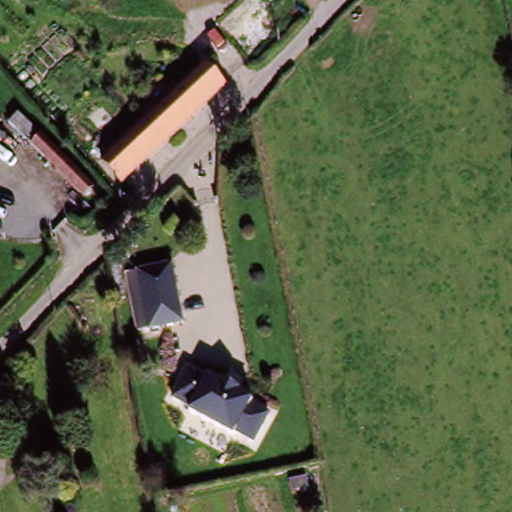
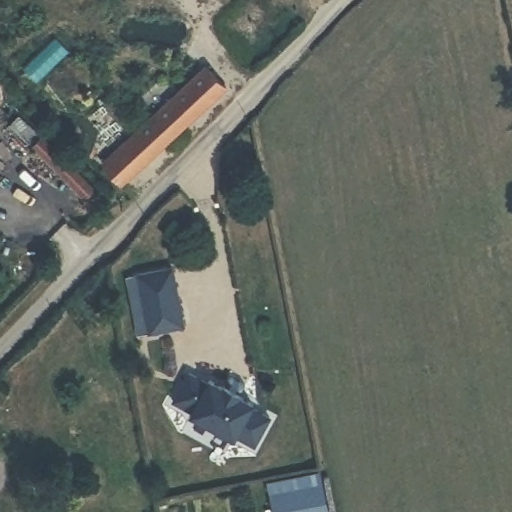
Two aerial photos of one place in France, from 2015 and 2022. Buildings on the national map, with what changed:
unchanged [(116,189),(96,167),(203,74),(222,96),(116,189)]
unchanged [(40,135),(28,145),(8,122),(20,112),(40,135)]
unchanged [(85,206),(50,169),(30,146),(44,136),(62,157),(97,196),(85,206)]
unchanged [(135,276),(168,266),(185,324),(151,333),(135,276)]
unchanged [(248,407),(267,416),(255,445),(235,437),(232,440),(188,422),(189,419),(168,410),(182,379),(202,388),(203,386),(216,390),(217,387),(234,393),(235,397),(247,402),(248,407)]
new [(273,512),(265,480),(320,468),(330,512),(273,512)]

